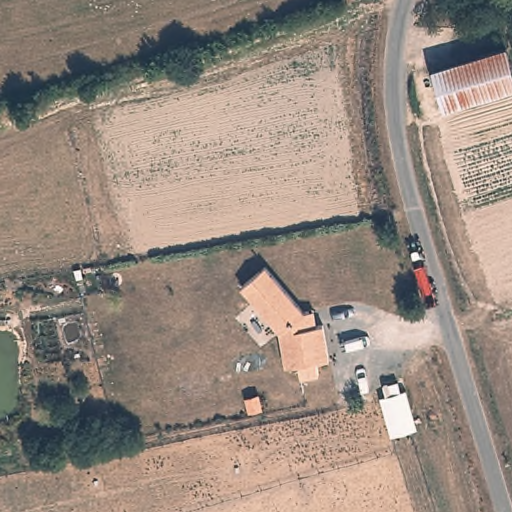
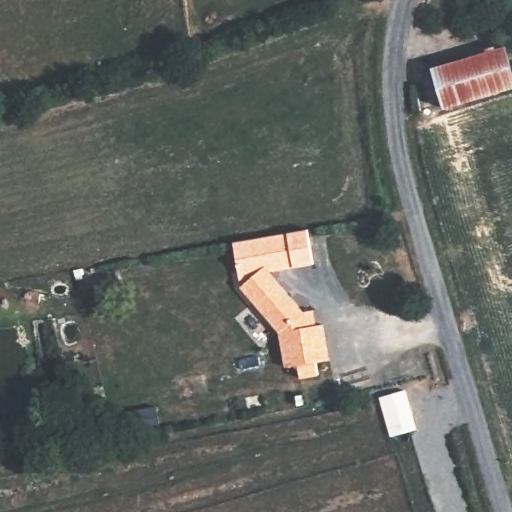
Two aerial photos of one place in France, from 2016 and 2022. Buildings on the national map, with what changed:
unchanged [(441,115),(431,75),(505,55),(512,78),(512,93),(441,115)]
new [(309,229),(315,265),(270,273),(264,265),(239,288),(233,242),(309,229)]
unchanged [(303,312),(316,309),(319,324),(326,324),(331,362),(318,364),(319,377),(297,380),(296,368),(284,369),(280,334),(239,288),(264,265),(303,312)]
unchanged [(390,437),(378,397),(386,394),(384,387),(399,383),(401,392),(407,391),(418,430),(390,437)]

